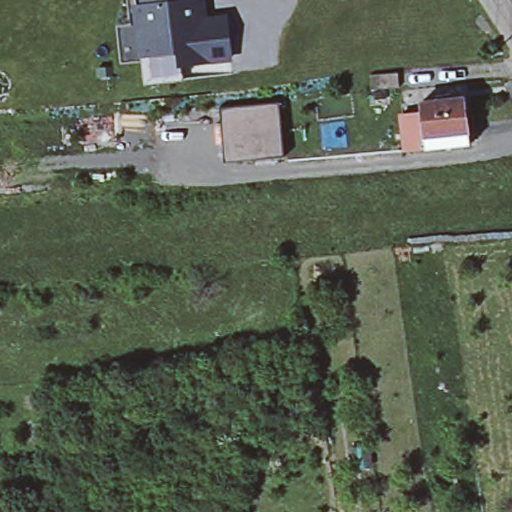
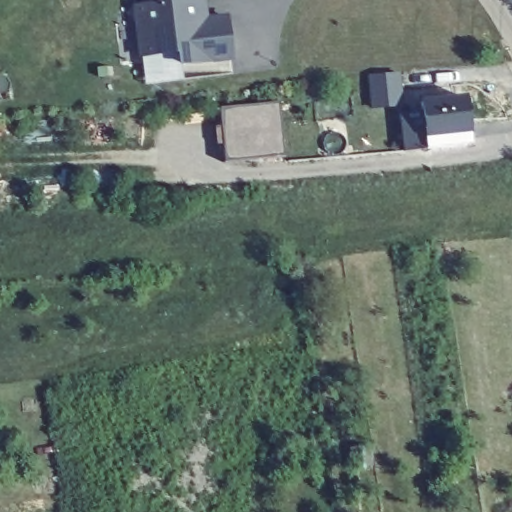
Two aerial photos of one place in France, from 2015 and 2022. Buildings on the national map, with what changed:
unchanged [(182,66),(180,53),(142,58),(136,9),(145,7),(144,0),(196,0),(196,1),(203,1),(205,21),(227,19),(232,61),(182,66)]
unchanged [(400,80),(402,95),(375,98),(372,83),(400,80)]
unchanged [(417,100),(460,96),(465,143),(421,146),(417,100)]
unchanged [(225,162),(220,108),(280,105),(285,156),(225,162)]

